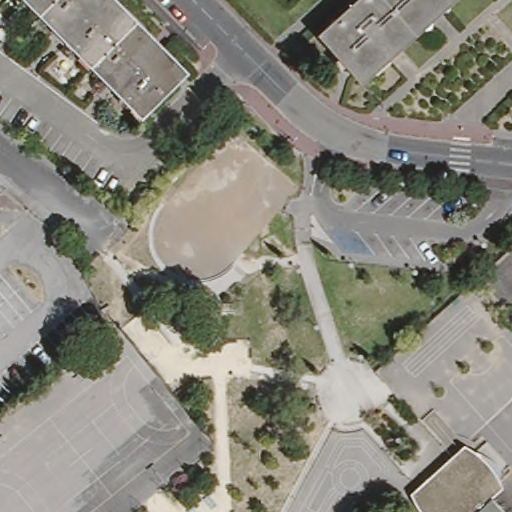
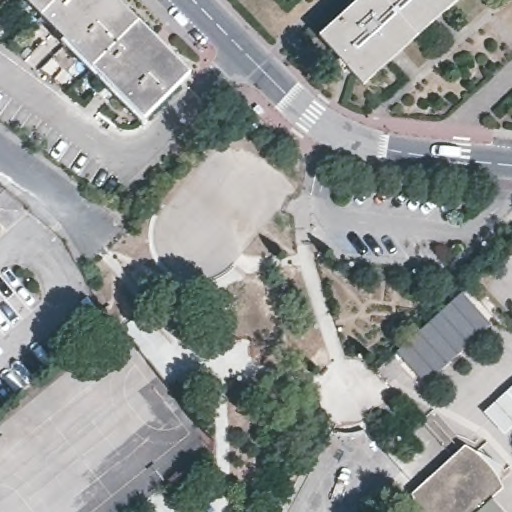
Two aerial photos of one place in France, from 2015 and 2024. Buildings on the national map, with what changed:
unchanged [(141,23),(190,71),(143,117),(83,55),(28,0),(118,0),(141,23)]
unchanged [(320,33),(357,0),(458,0),(364,84),(320,33)]
new [(462,293),(491,325),(426,384),(397,353),(462,293)]
new [(512,426),(503,434),(482,412),(512,384),(512,426)]
unchanged [(486,462),(492,468),(495,473),(500,481),(501,487),(490,497),(452,455),(461,447),(464,445),(468,447),(471,448),(477,452),(482,458),(486,462)]
unchanged [(503,512),(423,512),(421,510),(417,504),(413,497),(411,492),(452,455),(490,497),(503,512)]

